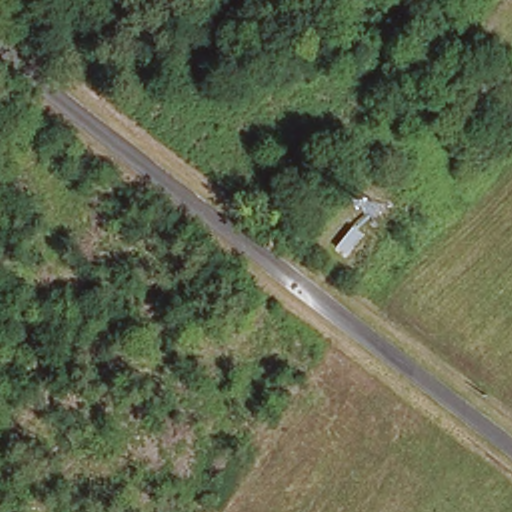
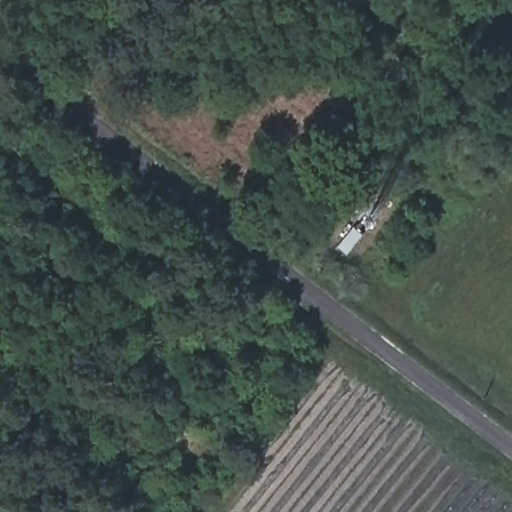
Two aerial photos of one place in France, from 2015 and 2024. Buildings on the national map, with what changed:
unchanged [(356,261),(345,252),(365,226),(375,235),(356,261)]

